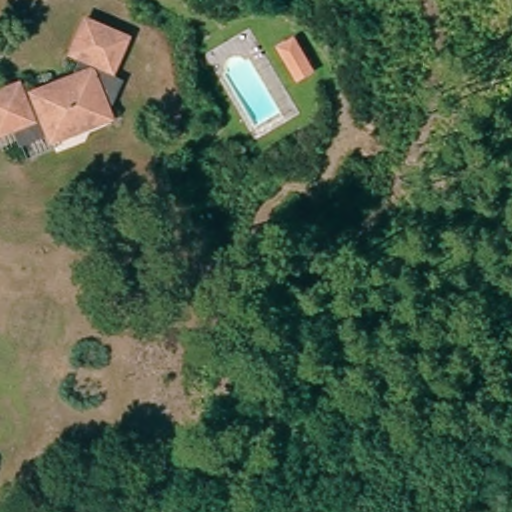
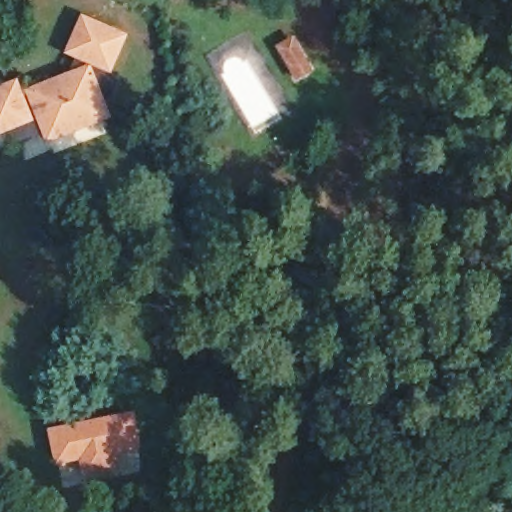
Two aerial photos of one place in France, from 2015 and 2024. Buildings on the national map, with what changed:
unchanged [(9,139),(0,142),(0,81),(7,78),(14,96),(23,93),(20,87),(45,77),(48,83),(57,79),(54,73),(63,70),(70,52),(59,48),(73,14),(99,25),(114,31),(98,71),(108,76),(96,104),(99,112),(70,124),(40,136),(44,144),(15,155),(9,139)]
unchanged [(285,45),(299,37),(317,68),(303,76),(285,45)]
new [(143,449),(116,455),(120,470),(84,477),(80,462),(55,467),(48,429),(135,411),(143,449)]

